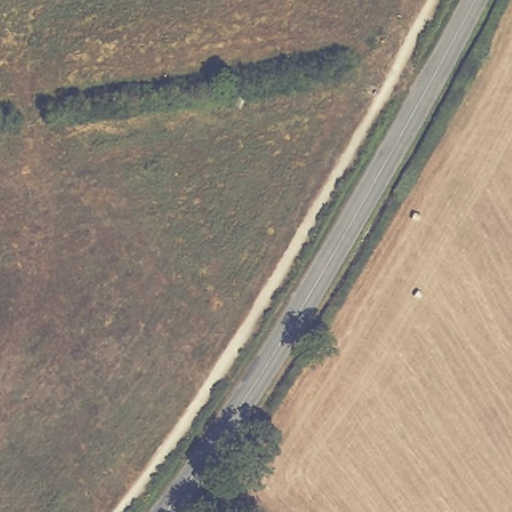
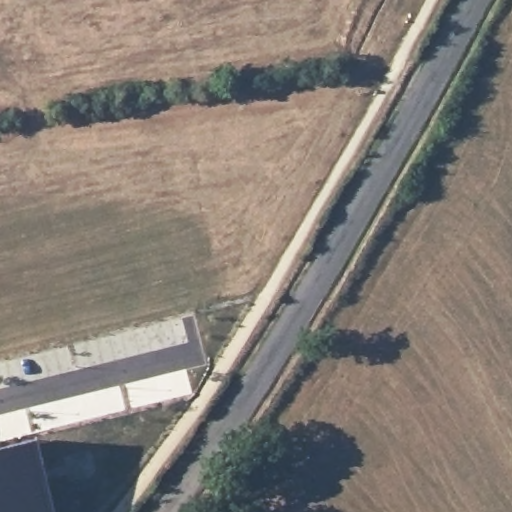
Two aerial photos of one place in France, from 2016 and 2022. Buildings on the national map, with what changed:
new [(36,439),(53,512),(0,512),(0,447),(36,439)]

